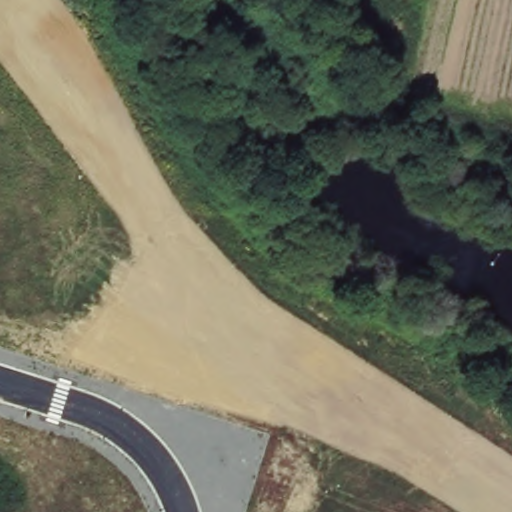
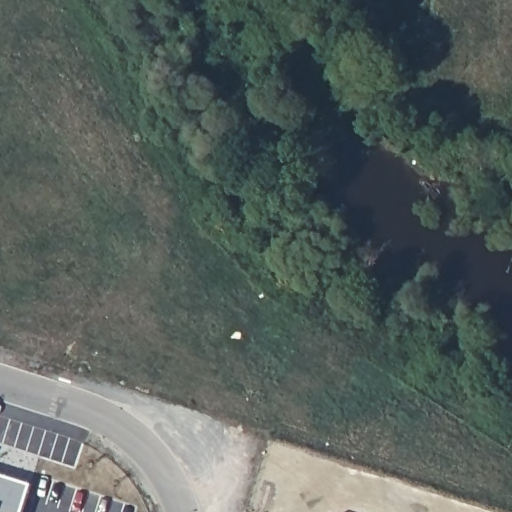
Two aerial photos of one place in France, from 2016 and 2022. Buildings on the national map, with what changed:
new [(32,484),(23,512),(0,512),(0,474),(32,484)]

